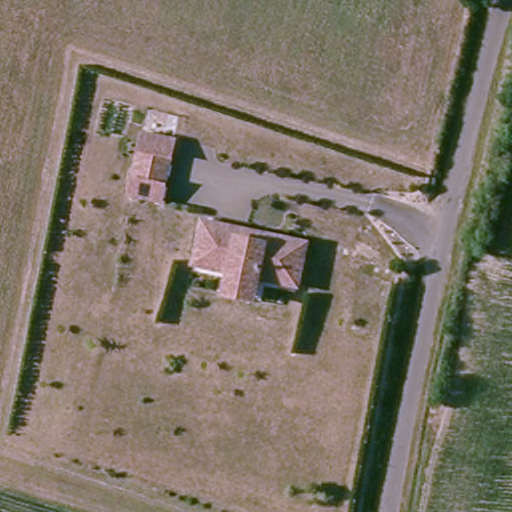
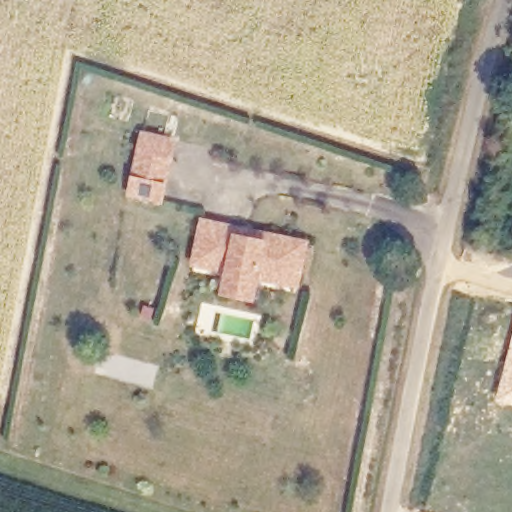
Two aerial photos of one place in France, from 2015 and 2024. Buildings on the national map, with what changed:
unchanged [(164,204),(129,198),(142,131),(176,137),(164,204)]
unchanged [(228,270),(229,262),(197,256),(205,215),(224,218),(223,220),(267,228),(306,235),(300,267),(298,275),(278,272),(259,268),(258,275),(256,287),(226,281),(228,270)]
new [(512,348),(510,348),(512,342),(512,348)]
new [(512,348),(512,405),(496,401),(510,348),(512,348)]

